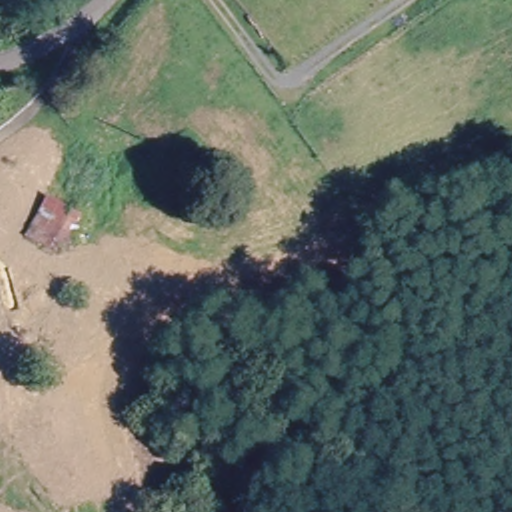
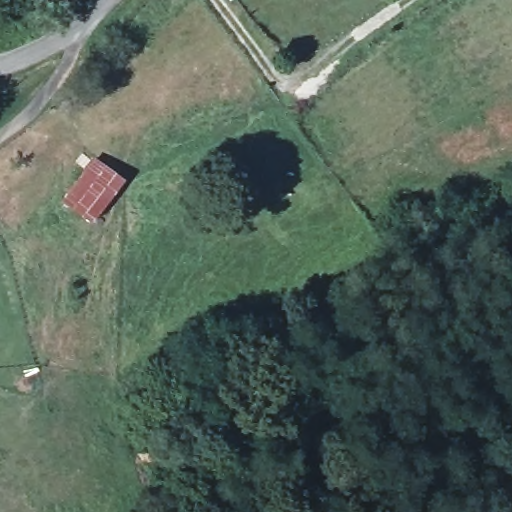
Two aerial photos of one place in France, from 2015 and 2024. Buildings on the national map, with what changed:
new [(94,156),(125,179),(93,224),(61,201),(94,156)]

